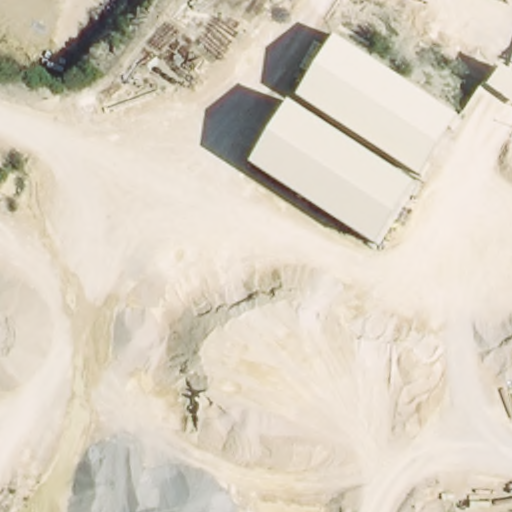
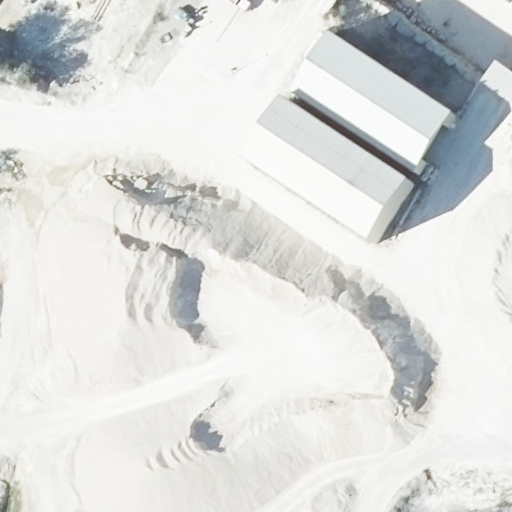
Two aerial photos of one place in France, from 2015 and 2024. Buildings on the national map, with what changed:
unchanged [(422,177),(297,95),(337,37),(464,119),(422,177)]
unchanged [(512,140),(510,141),(466,109),(483,80),(491,86),(507,62),(512,67),(512,140)]
unchanged [(416,185),(375,245),(250,162),(291,101),(416,185)]

